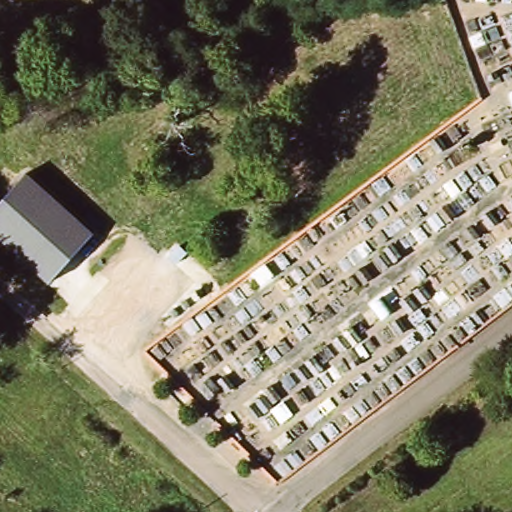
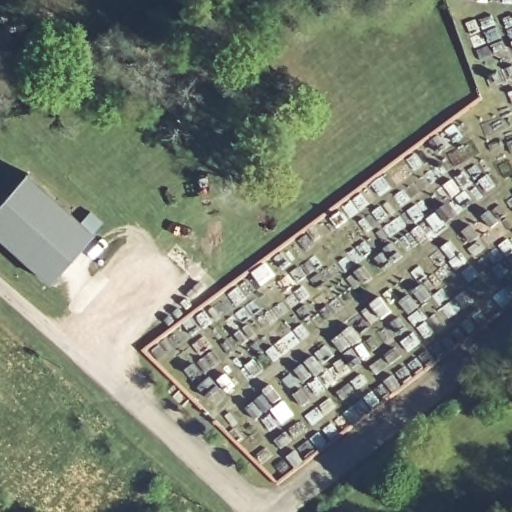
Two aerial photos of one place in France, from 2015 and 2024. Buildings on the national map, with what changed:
unchanged [(27,174),(95,235),(48,287),(0,243),(0,206),(27,174)]

